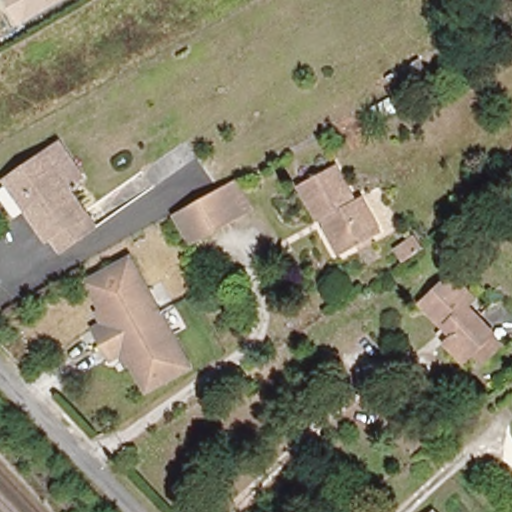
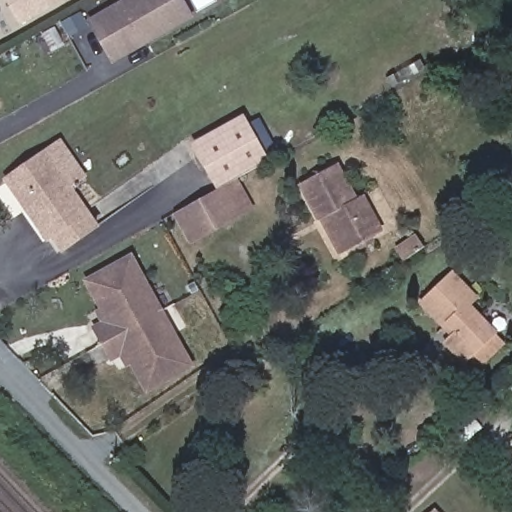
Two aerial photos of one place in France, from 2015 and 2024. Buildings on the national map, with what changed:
unchanged [(19,25),(5,0),(64,0),(19,25)]
new [(86,21),(123,0),(183,0),(194,18),(112,64),(86,21)]
new [(190,144),(242,115),(247,125),(259,118),(275,147),(263,154),(268,161),(237,177),(255,209),(190,246),(172,214),(214,191),(190,144)]
unchanged [(59,250),(50,236),(45,239),(4,180),(44,153),(57,144),(82,179),(67,189),(95,228),(59,250)]
unchanged [(323,216),(304,180),(340,161),(359,196),(365,193),(385,229),(348,248),(340,251),(323,216)]
demolished [(233,184),(221,195),(230,215),(181,255),(168,228),(226,175),(233,184)]
unchanged [(402,253),(396,243),(417,229),(423,239),(402,253)]
unchanged [(191,366),(147,390),(125,350),(111,357),(95,326),(109,319),(87,279),(131,256),(191,366)]
unchanged [(467,349),(460,355),(442,338),(451,330),(442,320),(419,295),(451,265),(472,286),(484,298),(475,307),(493,323),(503,335),(478,359),(467,349)]
unchanged [(446,508),(444,512),(423,512),(433,496),(446,508)]

